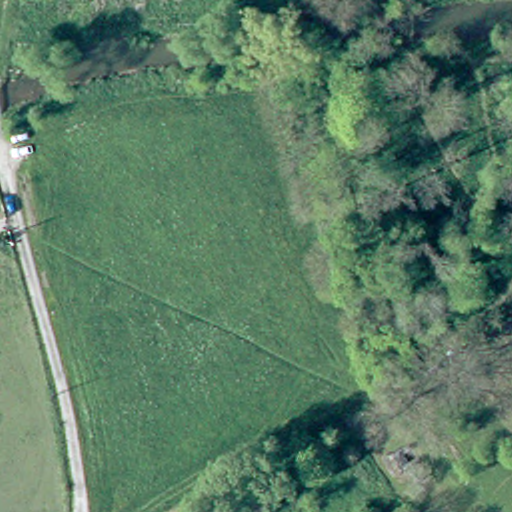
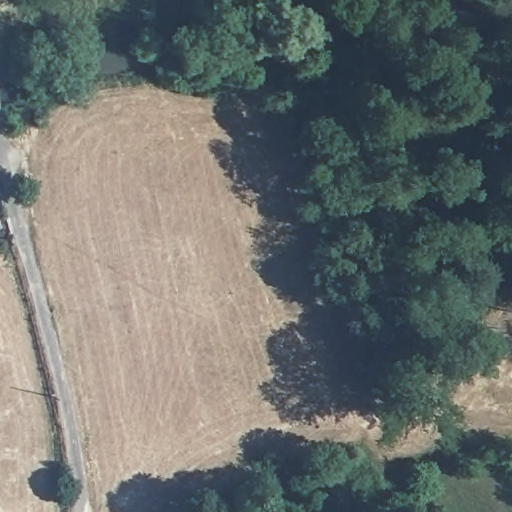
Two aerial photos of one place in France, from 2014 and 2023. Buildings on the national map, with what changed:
[]

